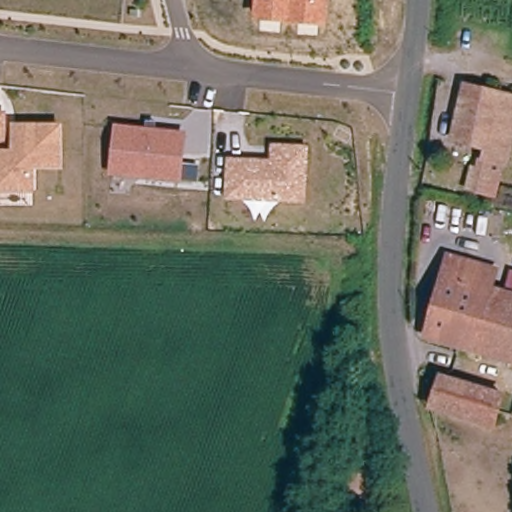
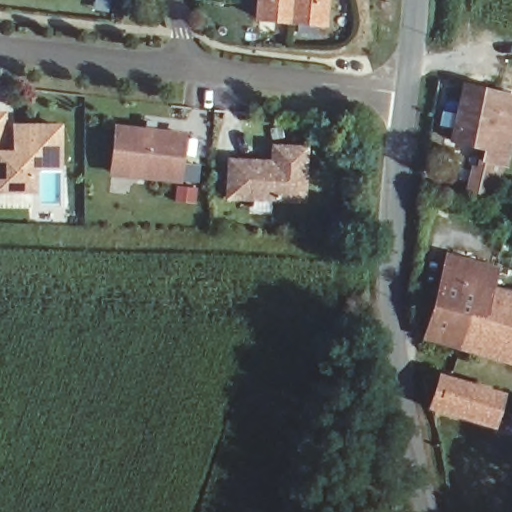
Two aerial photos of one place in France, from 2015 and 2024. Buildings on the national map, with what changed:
unchanged [(327,0),(325,27),(253,19),(255,0),(327,0)]
unchanged [(126,16),(126,22),(119,22),(119,15),(126,16)]
unchanged [(512,104),(512,133),(504,172),(498,171),(489,199),(464,191),(472,170),(479,172),(481,165),(474,162),(479,149),(447,141),(461,87),(512,104)]
unchanged [(4,137),(0,137),(0,106),(4,106),(4,137)]
unchanged [(1,181),(0,181),(0,144),(15,144),(15,117),(59,117),(59,157),(33,157),(34,180),(29,180),(29,195),(1,195),(1,181)]
unchanged [(118,157),(120,127),(185,134),(181,178),(151,176),(116,172),(118,157)]
unchanged [(269,160),(270,145),(302,146),(300,197),(225,195),(227,159),(258,160),(269,160)]
unchanged [(484,270),(481,288),(512,299),(512,371),(425,345),(447,257),(484,270)]
unchanged [(437,383),(503,403),(496,414),(495,428),(429,407),(437,383)]

